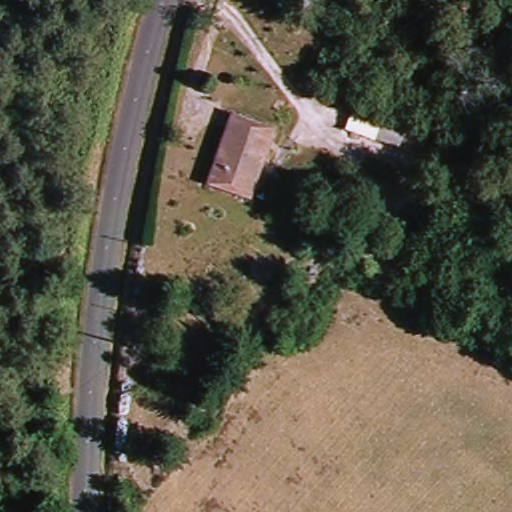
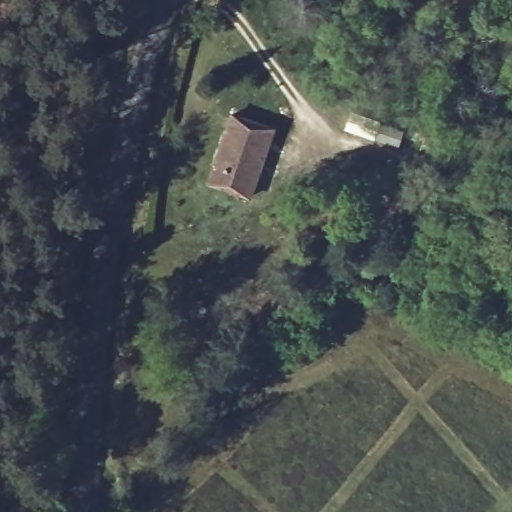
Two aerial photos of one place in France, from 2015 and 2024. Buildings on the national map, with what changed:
unchanged [(213,183),(220,164),(234,115),(273,128),(258,176),(253,195),(213,183)]

